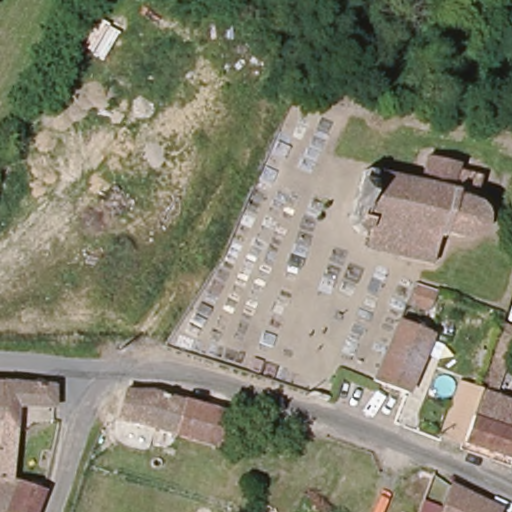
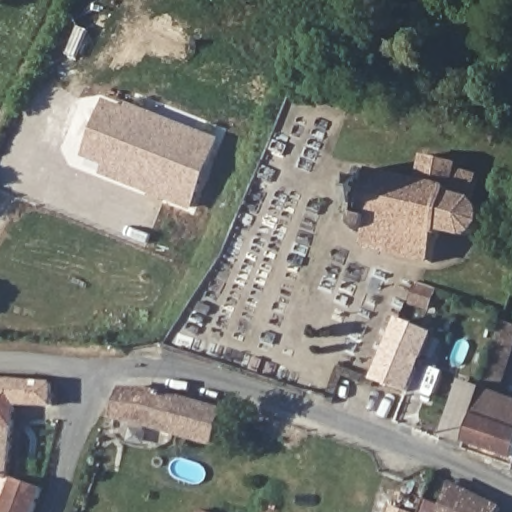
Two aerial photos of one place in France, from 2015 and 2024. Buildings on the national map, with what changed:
new [(126,108),(128,103),(218,138),(189,211),(99,176),(103,167),(82,158),(105,99),(126,108)]
unchanged [(423,184),(430,155),(460,163),(457,173),(483,179),(477,204),(481,208),(485,213),(486,219),(486,225),(485,231),(481,236),(477,240),(472,243),(466,244),(460,244),(453,241),(439,244),(433,266),(418,262),(366,249),(369,234),(357,230),(360,220),(352,218),(366,170),(423,184)]
unchanged [(412,282),(434,289),(426,310),(404,302),(412,282)]
unchanged [(433,334),(412,388),(376,376),(400,321),(433,334)]
unchanged [(512,353),(496,399),(512,404),(512,461),(466,444),(481,393),(502,328),(512,332),(512,353)]
unchanged [(5,380),(7,377),(55,376),(54,400),(19,400),(13,472),(0,472),(0,380),(5,380)]
unchanged [(121,388),(142,388),(221,410),(211,445),(114,417),(121,388)]
unchanged [(461,388),(481,393),(466,444),(445,436),(461,388)]
unchanged [(5,512),(0,511),(0,479),(17,481),(19,475),(47,485),(37,512),(5,512)]
unchanged [(499,512),(440,512),(451,489),(499,512)]

